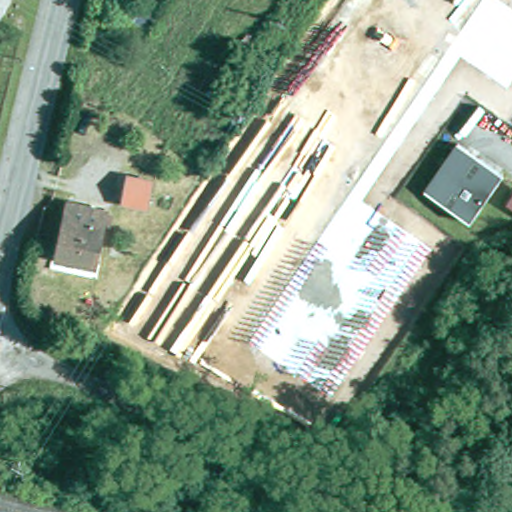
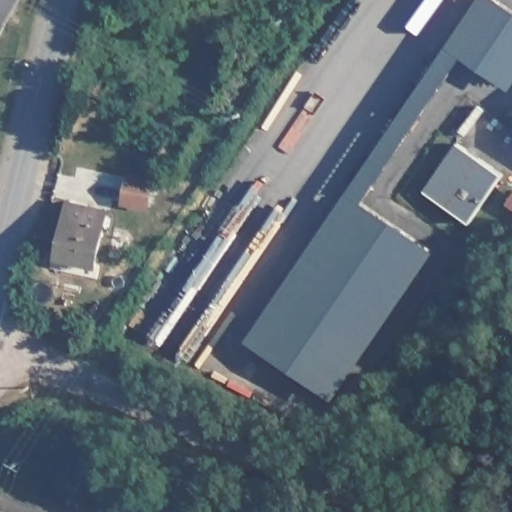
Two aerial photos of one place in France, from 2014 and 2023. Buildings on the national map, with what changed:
new [(462,55),(364,202),(435,250),(334,400),(246,341),(476,0),(499,0),(512,8),(512,86),(511,89),(462,55)]
unchanged [(135,20),(144,5),(160,15),(151,30),(135,20)]
unchanged [(468,224),(423,193),(456,145),(502,175),(468,224)]
unchanged [(123,202),(128,179),(150,182),(146,206),(123,202)]
unchanged [(57,265),(58,257),(69,205),(106,212),(95,265),(94,273),(57,265)]

